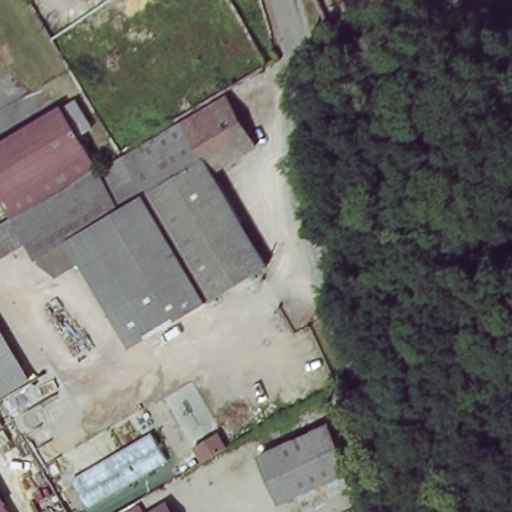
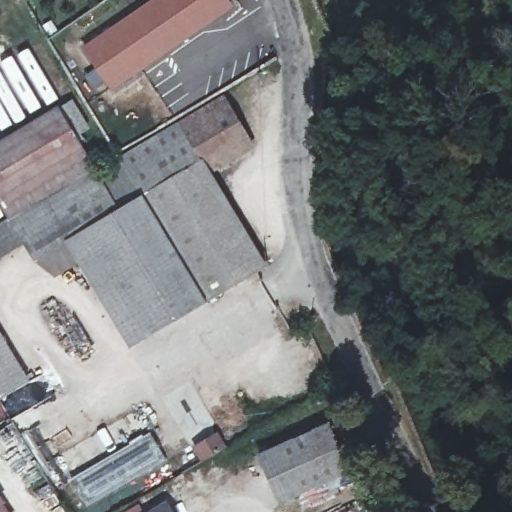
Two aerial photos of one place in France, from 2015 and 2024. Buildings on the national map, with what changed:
new [(148,0),(230,0),(234,5),(166,55),(110,91),(105,84),(93,91),(83,75),(93,68),(79,48),(148,0)]
unchanged [(55,189),(116,153),(180,116),(184,122),(226,97),(248,132),(256,145),(211,170),(265,264),(209,299),(141,192),(80,227),(55,189)]
unchanged [(83,149),(0,200),(0,140),(57,104),(83,149)]
unchanged [(83,231),(34,260),(16,245),(13,242),(1,221),(2,221),(9,216),(55,189),(80,227),(83,231)]
unchanged [(141,192),(209,299),(145,335),(83,231),(80,227),(141,192)]
unchanged [(0,250),(0,222),(1,221),(13,242),(0,250)]
unchanged [(0,332),(26,373),(19,389),(32,417),(19,426),(0,392),(0,332)]
unchanged [(259,457),(327,421),(348,463),(281,499),(259,457)]
new [(150,432),(166,460),(86,506),(70,479),(150,432)]
unchanged [(0,512),(0,500),(8,512),(0,512)]
unchanged [(173,512),(147,512),(167,501),(173,512)]

